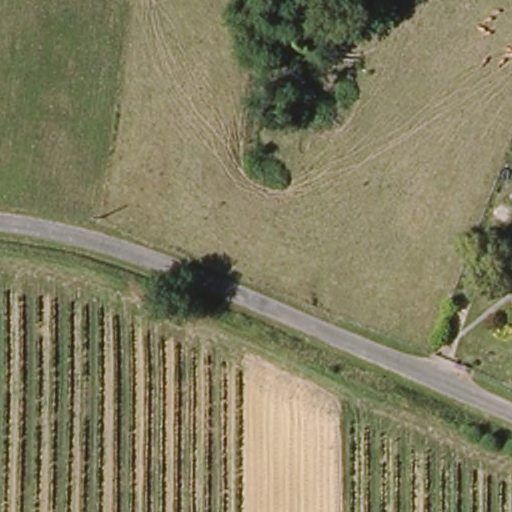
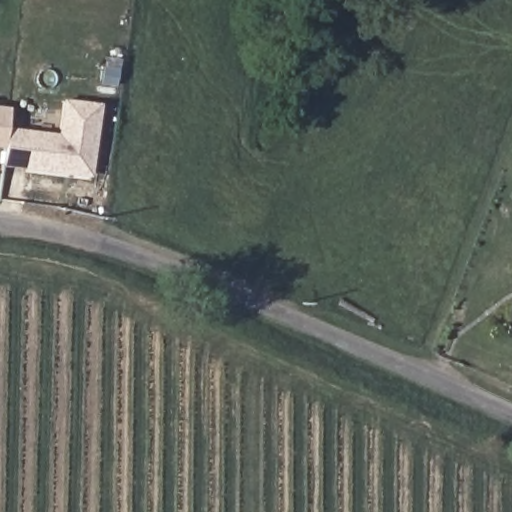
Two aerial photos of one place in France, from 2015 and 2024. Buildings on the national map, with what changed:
new [(1,167),(4,149),(2,149),(5,127),(55,133),(60,98),(100,103),(91,178),(1,167)]
new [(2,149),(0,148),(0,106),(7,107),(2,149)]

